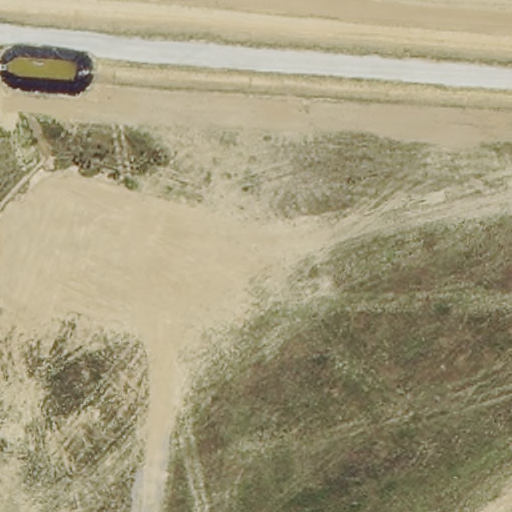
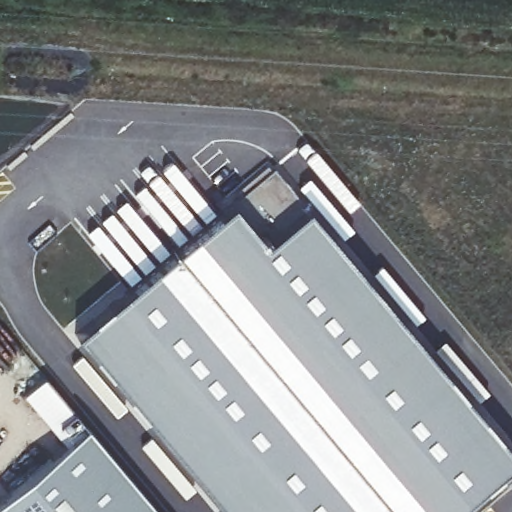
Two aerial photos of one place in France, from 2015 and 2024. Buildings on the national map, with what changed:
new [(233,202),(266,239),(307,205),(512,450),(512,462),(453,512),(222,512),(179,461),(131,403),(85,349),(74,334),(165,257),(233,202)]
new [(85,349),(131,403),(116,416),(70,363),(85,349)]
new [(141,512),(0,512),(0,494),(73,433),(141,512)]

